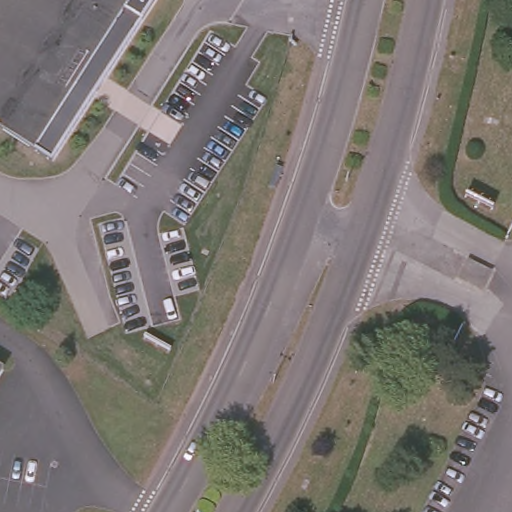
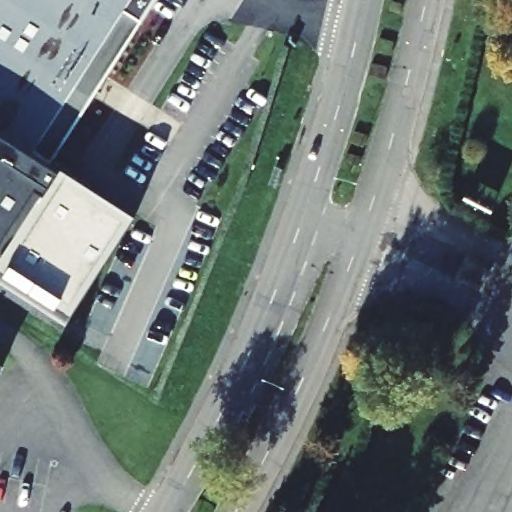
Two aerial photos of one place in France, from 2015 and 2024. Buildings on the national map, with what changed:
unchanged [(26,154),(0,136),(0,0),(128,0),(26,154)]
new [(26,154),(128,0),(155,0),(52,160),(62,165),(136,214),(67,322),(0,279),(0,136),(26,154)]

